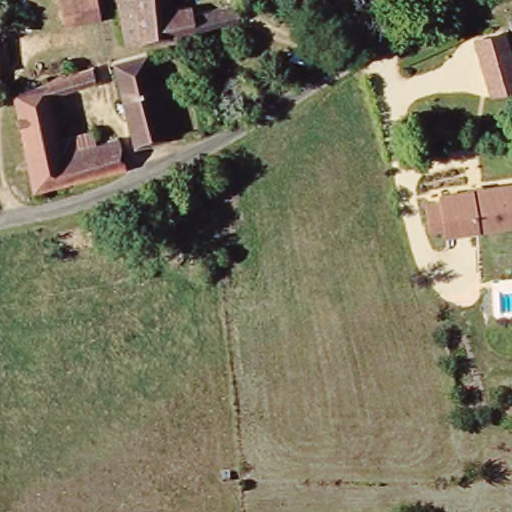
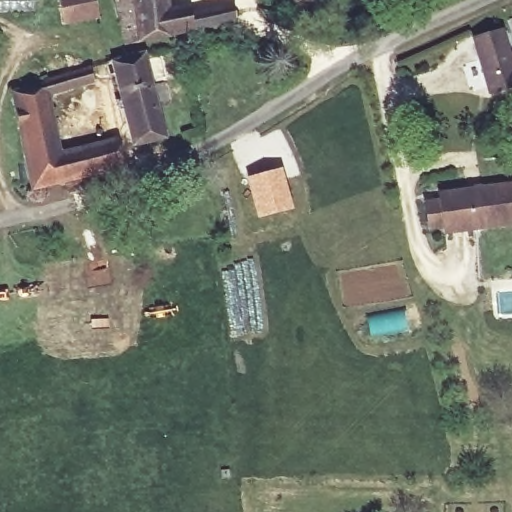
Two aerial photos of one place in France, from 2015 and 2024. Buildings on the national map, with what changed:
unchanged [(56,0),(91,0),(95,16),(62,25),(56,0)]
unchanged [(122,43),(112,0),(169,0),(170,5),(192,3),(193,11),(234,4),(237,16),(180,31),(122,43)]
unchanged [(500,27),(512,70),(512,84),(488,90),(472,35),(500,27)]
unchanged [(167,136),(135,144),(110,60),(113,60),(145,50),(167,136)]
unchanged [(118,171),(29,193),(5,98),(38,90),(37,84),(82,71),(87,88),(57,96),(71,150),(110,140),(118,171)]
new [(280,172),(290,210),(258,218),(249,180),(280,172)]
unchanged [(442,211),(440,205),(512,184),(512,223),(450,241),(448,235),(433,240),(427,215),(442,211)]

